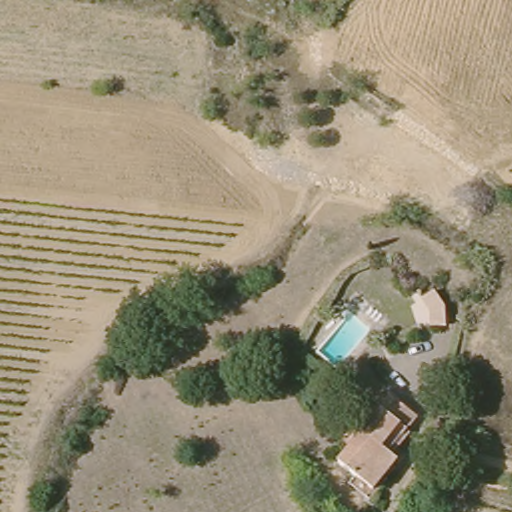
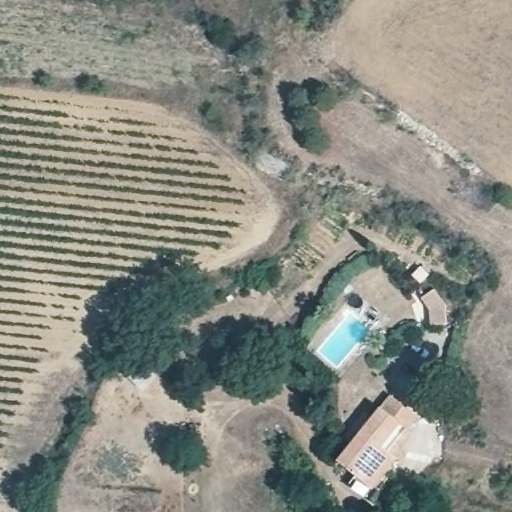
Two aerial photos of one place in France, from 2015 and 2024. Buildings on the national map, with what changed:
unchanged [(424,311),(412,298),(430,286),(440,303),(443,327),(423,327),(424,311)]
unchanged [(380,487),(345,458),(395,396),(416,412),(390,446),(404,457),(380,487)]

